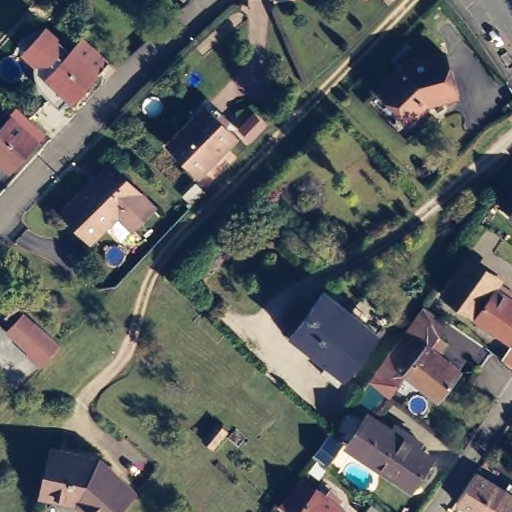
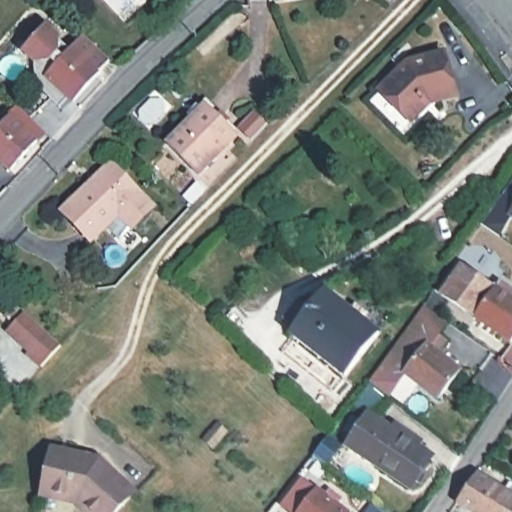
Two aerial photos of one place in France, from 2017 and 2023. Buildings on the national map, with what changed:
unchanged [(107,56),(71,96),(55,82),(49,88),(38,79),(46,70),(41,65),(52,52),(57,57),(79,32),(107,56)]
unchanged [(401,57),(439,49),(450,90),(433,96),(432,93),(418,97),(401,113),(375,86),(401,57)]
unchanged [(205,100),(235,128),(197,167),(167,138),(205,100)]
unchanged [(41,132),(7,169),(0,163),(0,124),(15,107),(41,132)]
unchanged [(112,157),(156,202),(135,222),(121,207),(93,234),(64,204),(112,157)]
unchanged [(188,177),(199,187),(187,200),(176,190),(188,177)]
unchanged [(508,213),(512,206),(512,216),(508,213)]
unchanged [(495,281),(499,275),(512,284),(512,286),(510,291),(512,292),(512,334),(511,336),(443,289),(464,260),(495,281)]
unchanged [(298,289),(308,295),(320,281),(346,302),(351,296),(363,305),(358,311),(374,325),(332,375),(318,362),(323,357),(284,323),(292,314),(283,307),(298,289)]
unchanged [(3,293),(11,301),(1,312),(0,312),(0,297),(3,293)]
unchanged [(434,312),(420,331),(407,321),(421,302),(434,312)]
unchanged [(36,325),(62,349),(43,370),(30,357),(32,355),(19,343),(36,325)]
unchanged [(453,327),(478,345),(470,356),(445,339),(453,327)]
unchanged [(406,328),(420,338),(425,332),(435,340),(430,347),(454,365),(434,392),(400,367),(408,355),(394,344),(406,328)]
unchanged [(512,343),(512,361),(502,355),(511,342),(512,343)]
unchanged [(372,412),(421,446),(418,451),(431,461),(412,490),(347,446),(372,412)]
unchanged [(50,438),(99,448),(134,482),(104,512),(99,512),(79,492),(41,483),(50,438)]
unchanged [(508,490),(512,485),(512,512),(478,512),(458,499),(478,471),(508,490)]
unchanged [(305,477),(327,492),(330,488),(340,496),(337,500),(349,510),(347,512),(293,512),(283,505),(305,477)]
unchanged [(367,497),(387,512),(364,512),(359,508),(367,497)]

